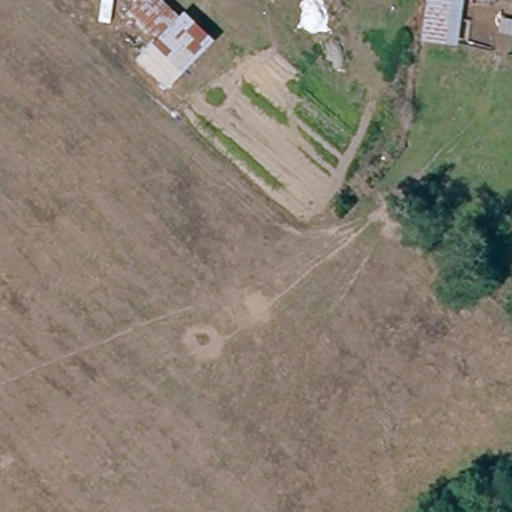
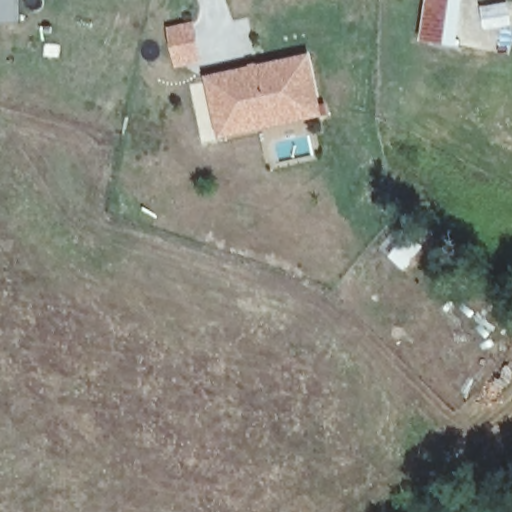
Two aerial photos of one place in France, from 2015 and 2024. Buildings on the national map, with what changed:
unchanged [(414,40),(419,0),(458,0),(452,46),(414,40)]
new [(194,24),(200,57),(176,62),(170,29),(194,24)]
new [(217,139),(205,76),(311,52),(324,114),(217,139)]

